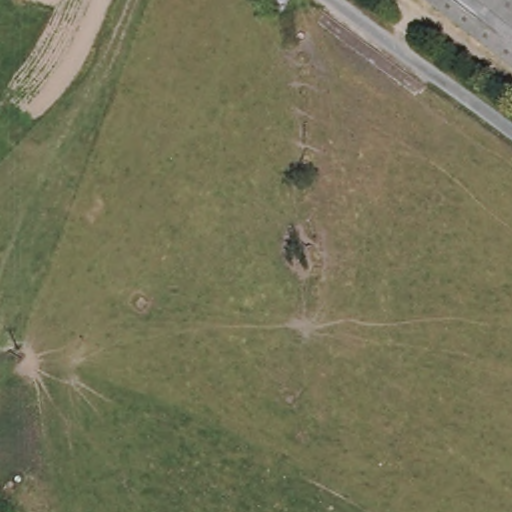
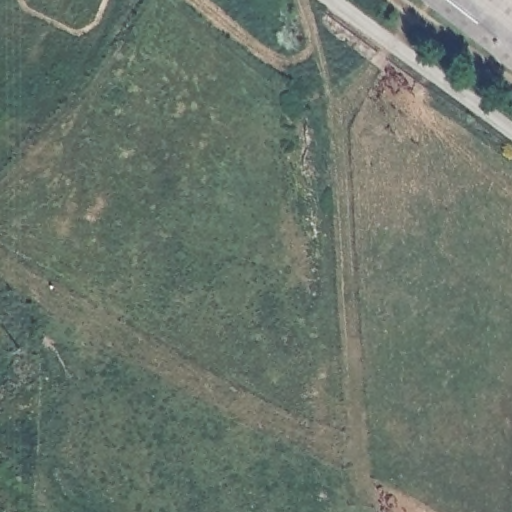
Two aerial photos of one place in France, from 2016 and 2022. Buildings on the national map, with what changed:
unchanged [(428,0),(512,0),(512,65),(428,0)]

